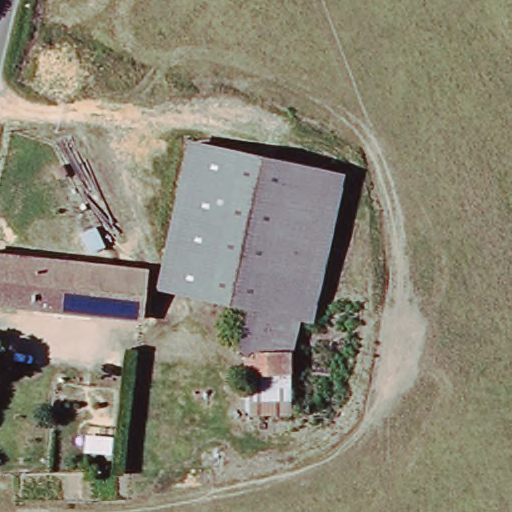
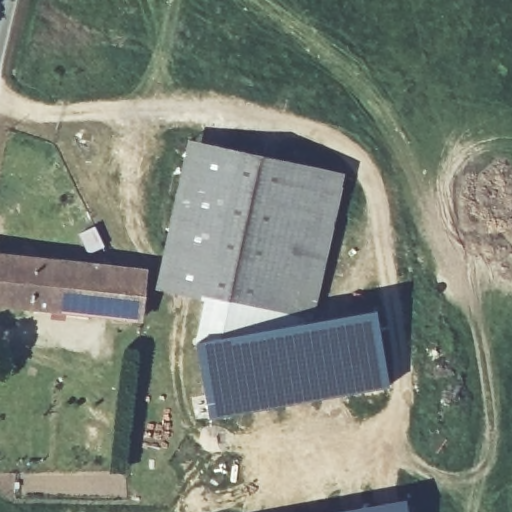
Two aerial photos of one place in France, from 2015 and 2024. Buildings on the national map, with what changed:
unchanged [(243,301),(153,279),(187,136),(339,173),(304,316),(292,313),(243,301)]
unchanged [(135,315),(0,300),(0,250),(141,267),(135,315)]
new [(194,342),(373,309),(388,388),(209,419),(194,342)]
new [(404,506),(405,512),(365,512),(404,506)]

